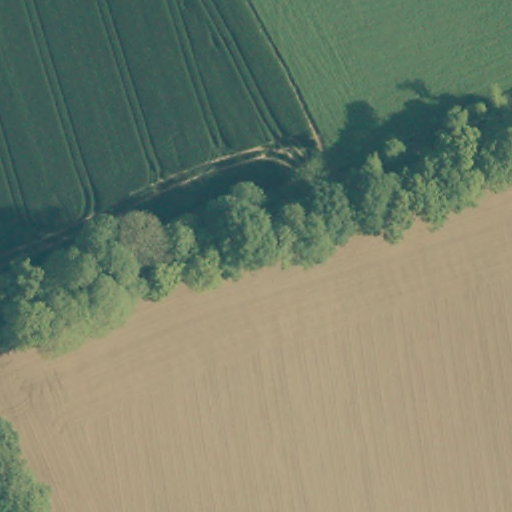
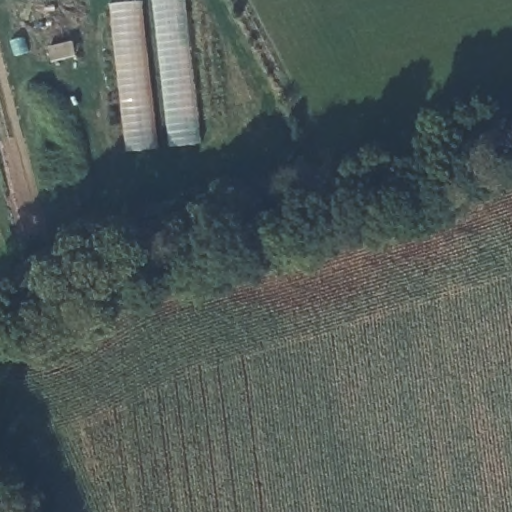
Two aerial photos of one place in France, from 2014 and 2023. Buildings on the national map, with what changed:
new [(125,151),(106,0),(140,0),(159,146),(125,151)]
new [(170,146),(152,0),(184,0),(200,143),(170,146)]

